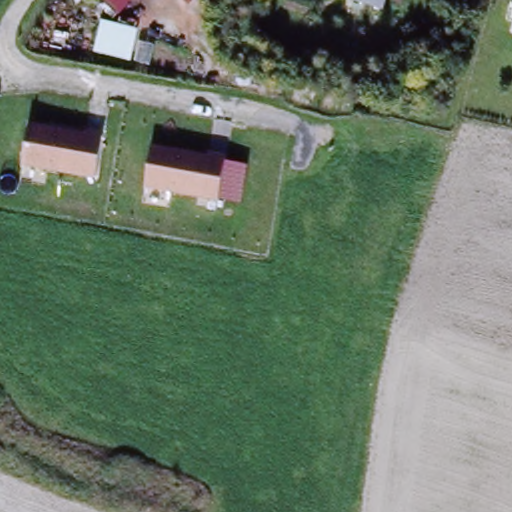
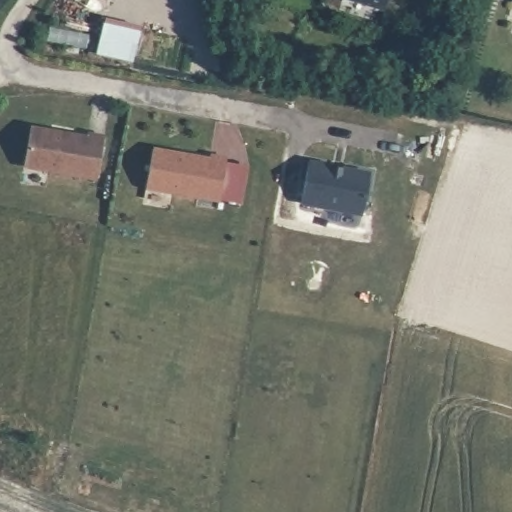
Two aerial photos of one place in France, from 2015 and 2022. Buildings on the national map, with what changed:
unchanged [(134,0),(120,16),(99,0),(134,0)]
unchanged [(340,0),(383,0),(380,11),(340,0)]
unchanged [(87,137),(87,134),(104,136),(97,178),(24,168),(30,129),(87,137)]
unchanged [(146,186),(152,147),(209,155),(210,151),(225,154),(219,197),(146,186)]
new [(372,174),(365,216),(304,205),(311,163),(372,174)]

